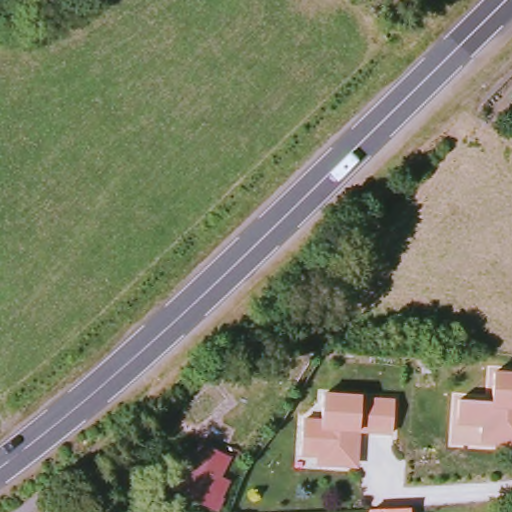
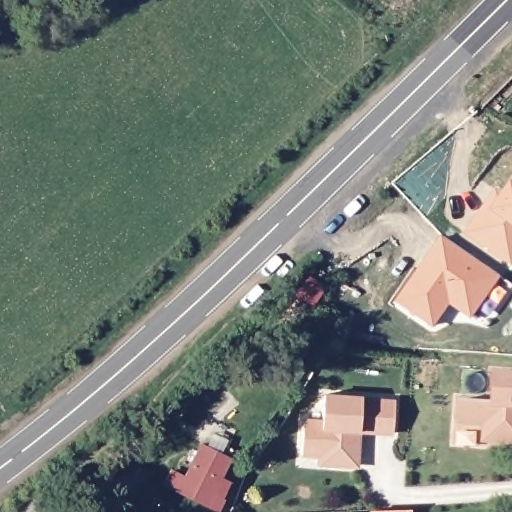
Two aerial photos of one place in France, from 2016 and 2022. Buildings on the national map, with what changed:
new [(502,196),(512,183),(512,264),(512,265),(467,233),(487,205),(497,191),(502,196)]
new [(442,236),(500,276),(471,317),(450,302),(434,326),(398,301),(442,236)]
unchanged [(301,289),(307,278),(324,287),(317,298),(301,289)]
unchanged [(460,425),(461,395),(494,400),(497,365),(512,367),(512,442),(483,443),(484,424),(460,425)]
unchanged [(394,430),(362,430),(362,432),(360,466),(319,464),(319,457),(305,456),(305,418),(323,416),(326,387),(362,391),(400,397),(394,430)]
unchanged [(180,493),(187,479),(195,482),(209,449),(228,457),(207,505),(180,493)]

